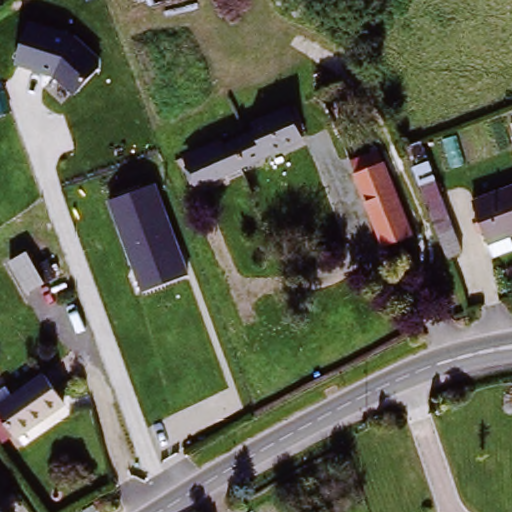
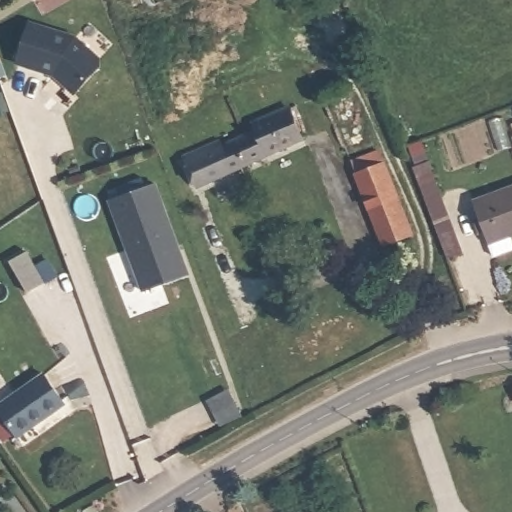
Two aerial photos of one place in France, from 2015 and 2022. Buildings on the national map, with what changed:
unchanged [(74,36),(100,62),(101,69),(74,97),(53,77),(17,65),(28,22),(74,36)]
unchanged [(206,173),(194,179),(188,163),(294,116),(306,142),(211,184),(206,173)]
unchanged [(449,261),(413,169),(419,166),(412,148),(424,144),(456,230),(465,255),(449,261)]
unchanged [(389,253),(354,166),(382,156),(416,242),(389,253)]
unchanged [(153,187),(186,277),(143,294),(108,202),(153,187)]
unchanged [(472,201),(512,189),(512,235),(509,236),(512,251),(491,257),(472,201)]
unchanged [(0,411),(46,378),(67,408),(20,441),(0,413),(0,411)]

